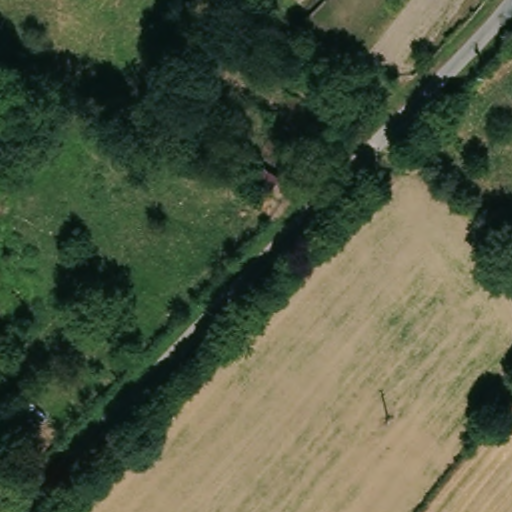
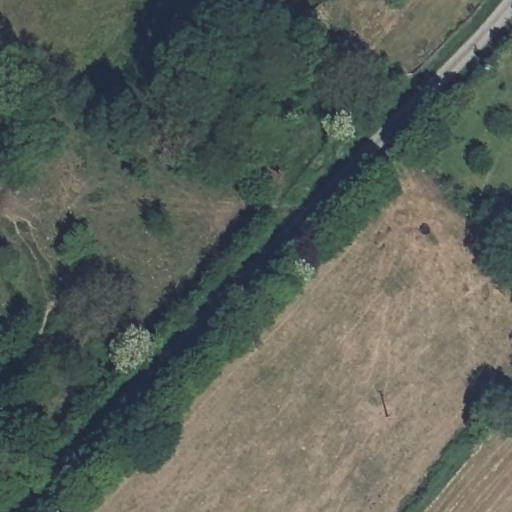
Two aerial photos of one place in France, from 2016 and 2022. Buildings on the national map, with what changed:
unchanged [(342,83),(334,100),(315,91),(322,75),(342,83)]

